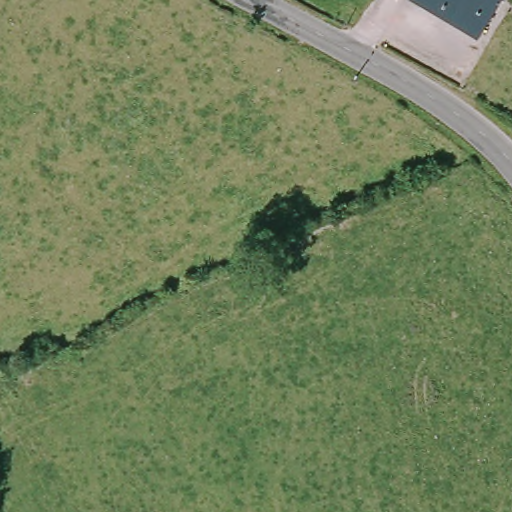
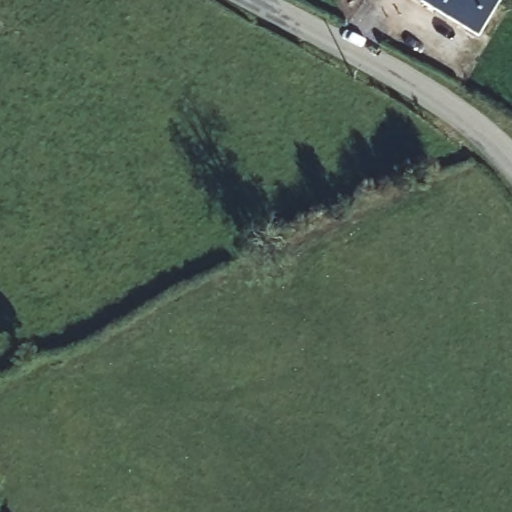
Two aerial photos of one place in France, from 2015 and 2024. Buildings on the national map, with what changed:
unchanged [(414,3),(415,0),(501,0),(492,18),(485,34),(465,26),(414,3)]

